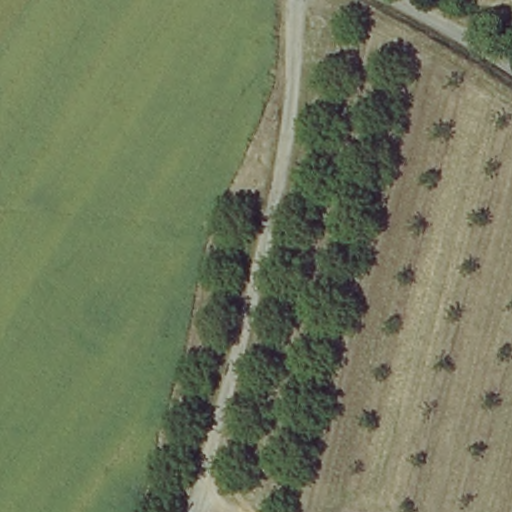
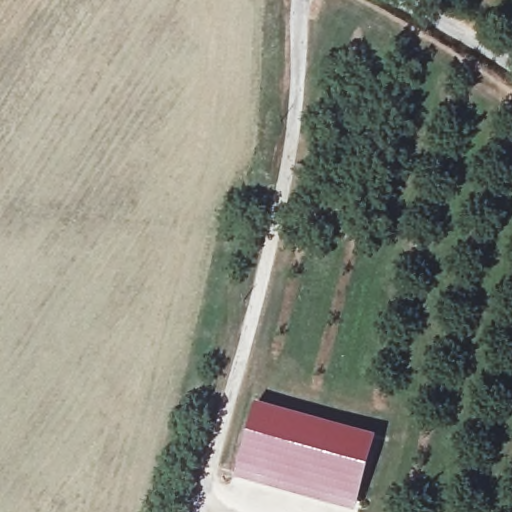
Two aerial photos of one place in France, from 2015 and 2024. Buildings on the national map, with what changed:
new [(257,405),(378,440),(355,512),(351,512),(237,480),(257,405)]

